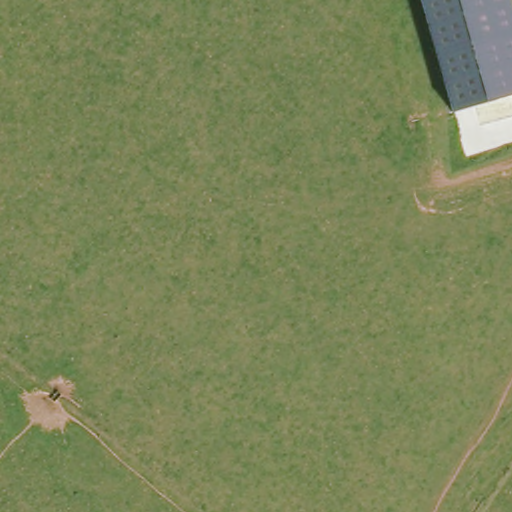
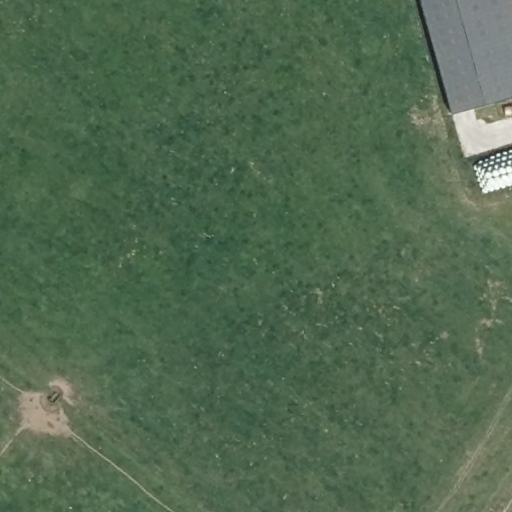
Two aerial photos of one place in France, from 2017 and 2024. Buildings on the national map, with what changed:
unchanged [(449,114),(418,0),(498,0),(512,48),(512,95),(449,114)]
unchanged [(498,0),(510,0),(512,8),(512,48),(498,0)]

